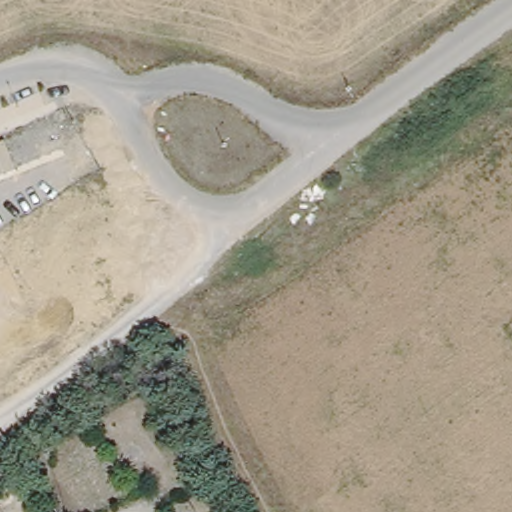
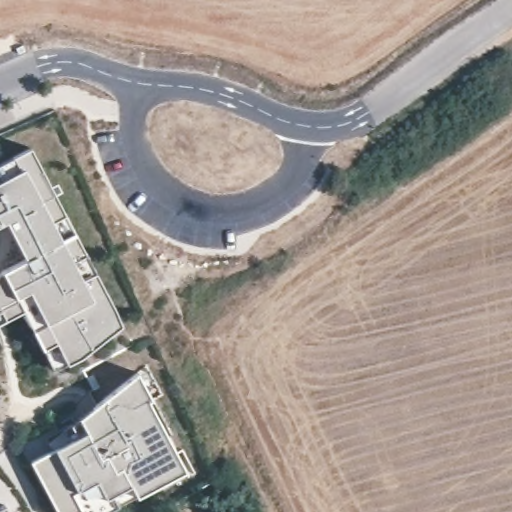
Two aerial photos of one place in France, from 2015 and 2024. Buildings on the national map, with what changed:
new [(121,322),(66,365),(56,341),(42,347),(22,308),(0,320),(0,160),(30,145),(121,322)]
new [(50,420),(74,407),(71,400),(92,390),(82,371),(133,344),(197,475),(165,493),(162,488),(112,512),(55,512),(32,461),(65,445),(50,420)]
new [(0,512),(0,508),(7,505),(10,512),(0,512)]

